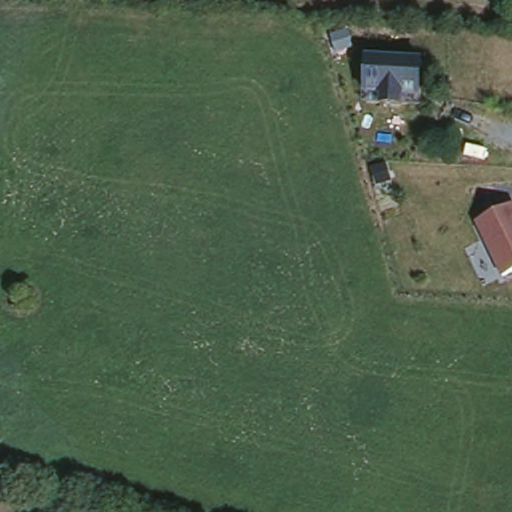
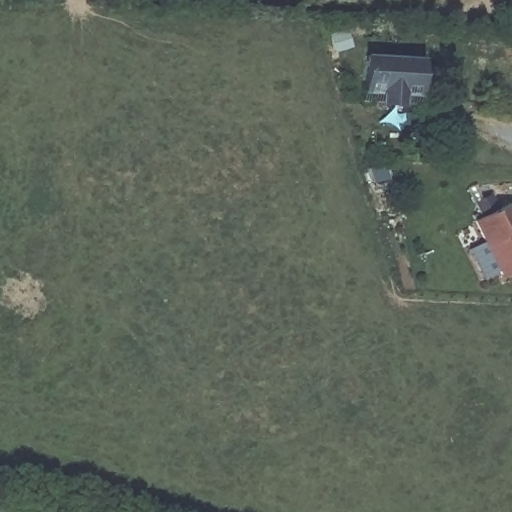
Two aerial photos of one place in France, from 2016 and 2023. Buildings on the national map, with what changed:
unchanged [(422,108),(365,102),(367,51),(425,55),(422,108)]
unchanged [(512,204),(512,272),(505,276),(478,220),(512,204)]

